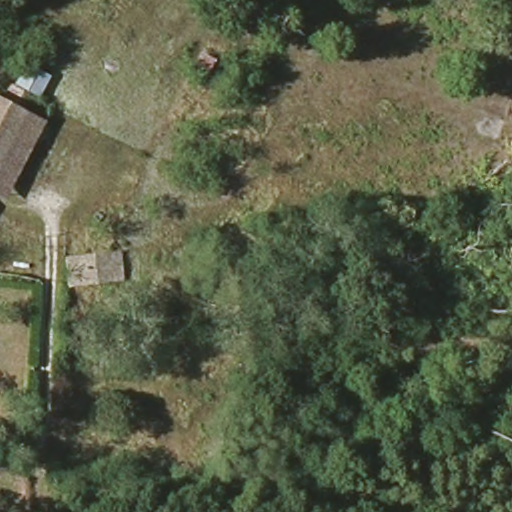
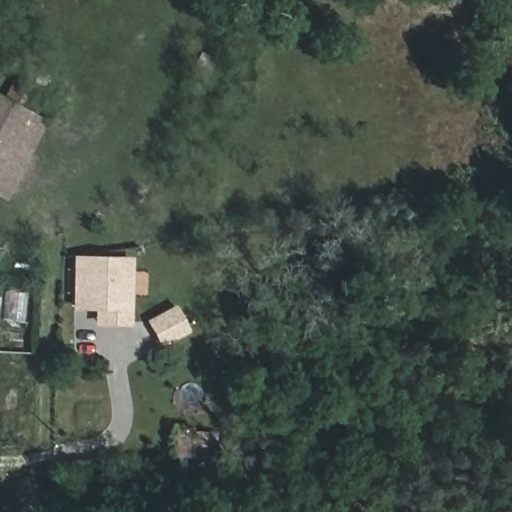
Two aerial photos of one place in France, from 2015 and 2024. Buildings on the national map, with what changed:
unchanged [(36,91),(12,79),(2,74),(12,55),(23,61),(45,73),(36,91)]
unchanged [(1,99),(10,83),(31,95),(24,109),(0,155),(0,99),(1,99)]
unchanged [(24,109),(40,119),(4,193),(0,191),(0,155),(24,109)]
new [(72,310),(74,256),(132,256),(132,310),(72,310)]
demolished [(114,283),(77,285),(77,261),(112,258),(114,283)]

